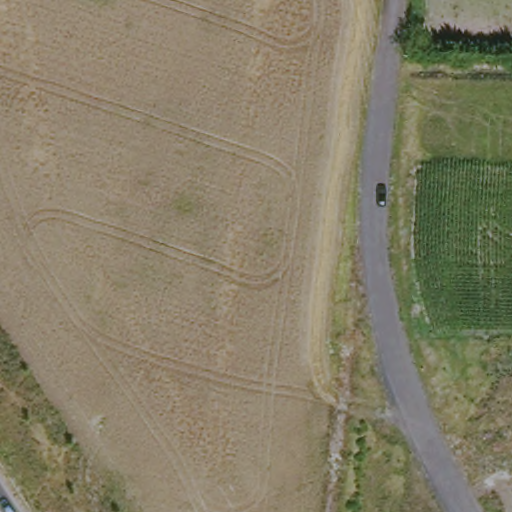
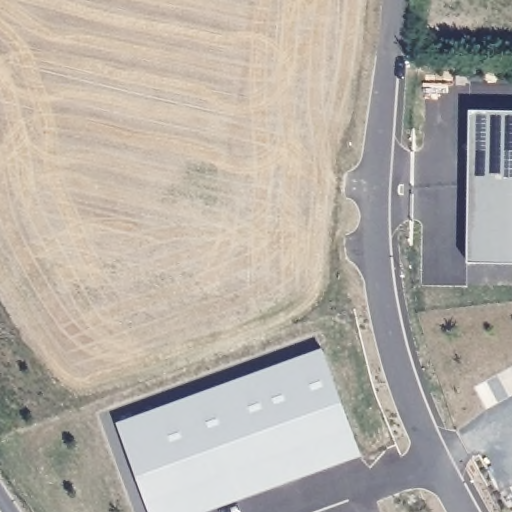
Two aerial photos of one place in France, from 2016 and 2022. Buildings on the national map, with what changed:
new [(512,110),(512,262),(467,260),(470,109),(512,110)]
new [(207,510),(207,512),(151,512),(118,422),(322,347),(361,455),(207,510)]

